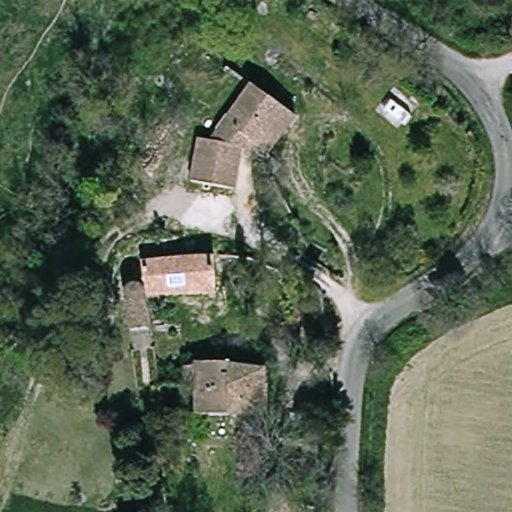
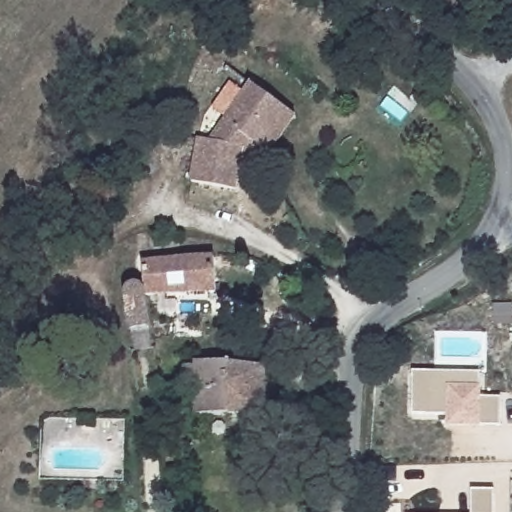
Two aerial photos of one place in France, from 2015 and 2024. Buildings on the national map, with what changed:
unchanged [(250,159),(245,179),(202,159),(205,148),(217,151),(250,83),(287,101),(298,106),(267,168),(250,159)]
unchanged [(240,202),(198,195),(202,159),(245,179),(240,202)]
unchanged [(148,290),(147,255),(156,255),(157,258),(173,257),(173,254),(189,254),(192,258),(206,257),(206,255),(218,255),(219,292),(158,295),(158,298),(149,299),(153,331),(132,332),(129,294),(134,286),(141,285),(148,290)]
unchanged [(195,385),(184,384),(184,366),(194,366),(195,362),(226,364),(227,367),(268,375),(267,417),(195,414),(195,385)]
new [(481,372),(480,386),(482,386),(482,398),(501,397),(501,425),(483,425),(482,427),(446,427),(446,413),(413,414),(413,372),(481,372)]
unchanged [(176,445),(177,469),(163,470),(162,445),(176,445)]
new [(472,490),(495,489),(495,512),(472,512),(472,490)]

